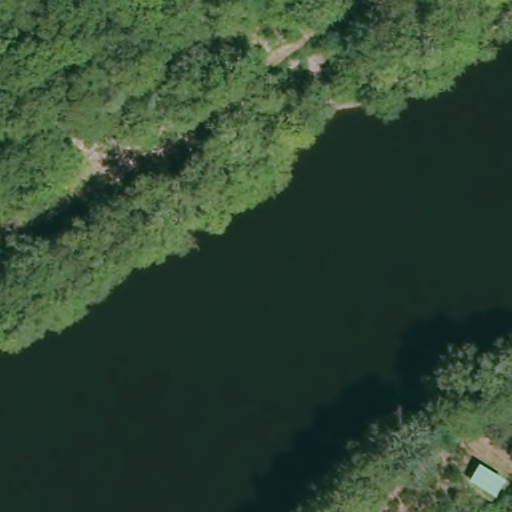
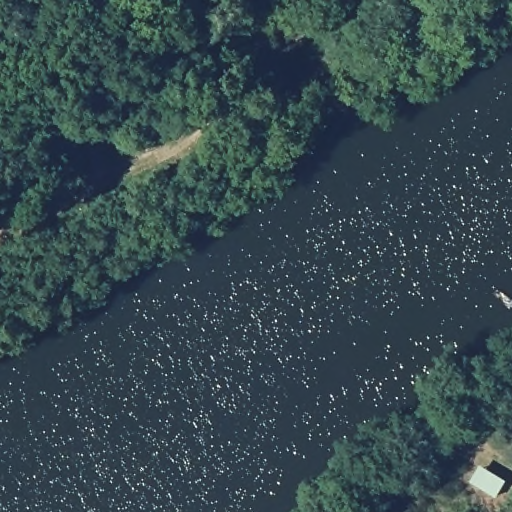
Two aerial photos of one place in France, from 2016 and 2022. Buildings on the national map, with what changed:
unchanged [(501,418),(512,413),(512,438),(501,418)]

